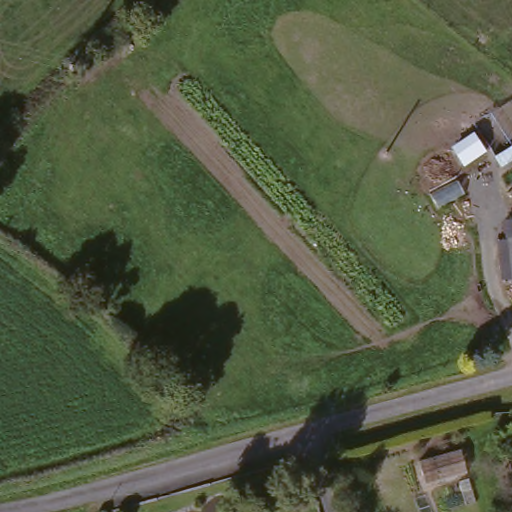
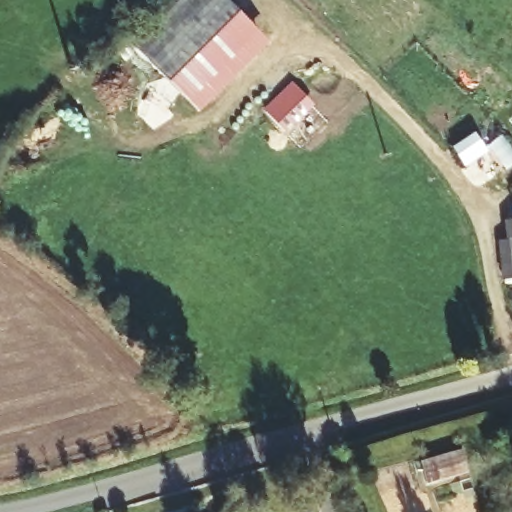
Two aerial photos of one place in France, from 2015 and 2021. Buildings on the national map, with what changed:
new [(232,0),(267,38),(194,105),(139,46),(189,0),(232,0)]
unchanged [(506,246),(512,245),(512,291),(507,257),(506,246)]

